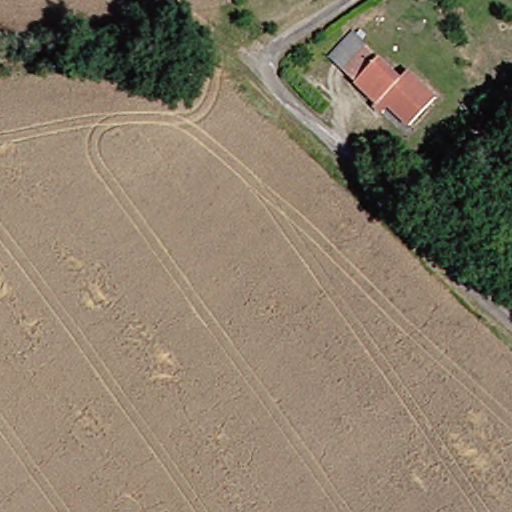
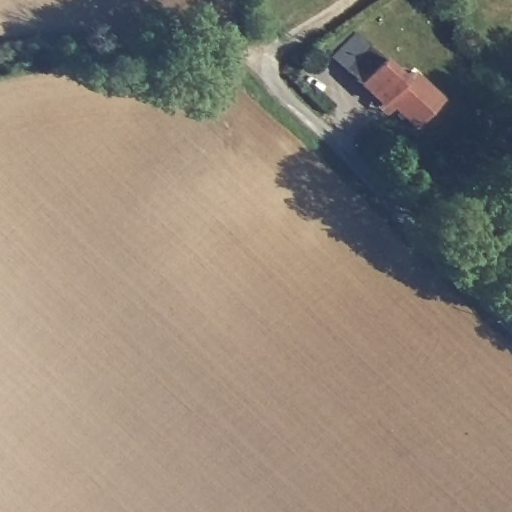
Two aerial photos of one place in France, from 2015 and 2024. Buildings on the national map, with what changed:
unchanged [(405,70),(433,94),(406,125),(377,100),(374,104),(337,72),(360,45),(398,77),(405,70)]

